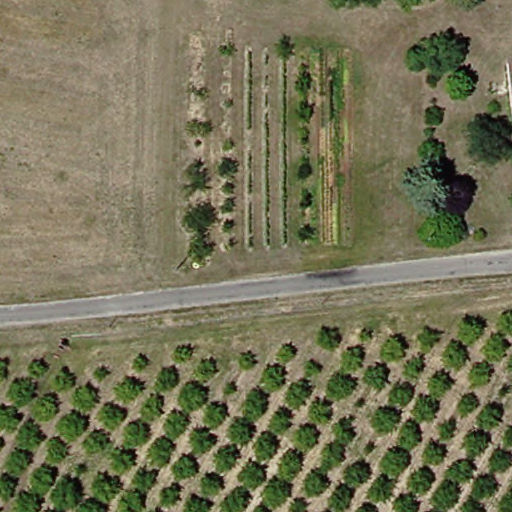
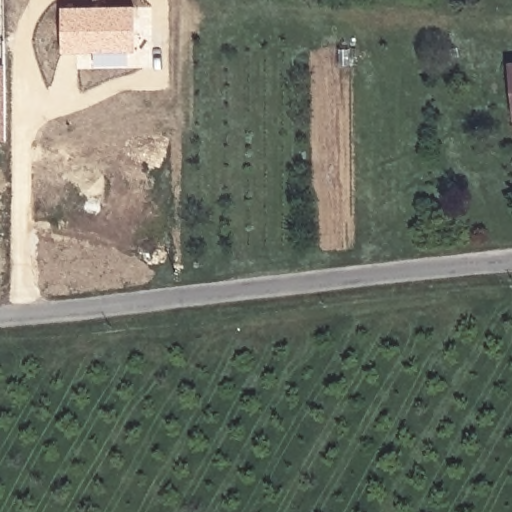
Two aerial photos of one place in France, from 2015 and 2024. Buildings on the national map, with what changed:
new [(135,52),(62,54),(61,5),(134,5),(135,52)]
unchanged [(509,117),(507,62),(512,62),(512,117),(509,117)]
new [(0,140),(0,65),(4,65),(5,140),(0,140)]

